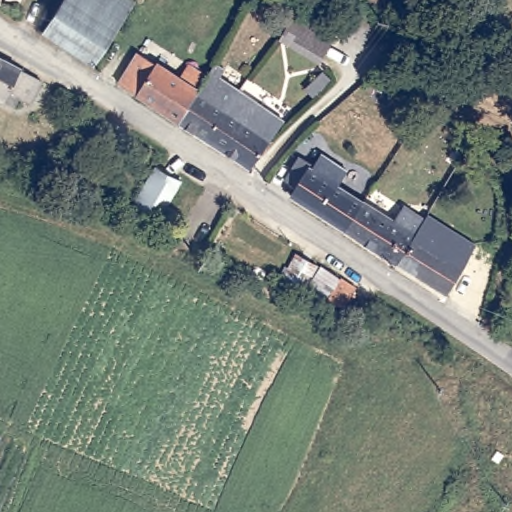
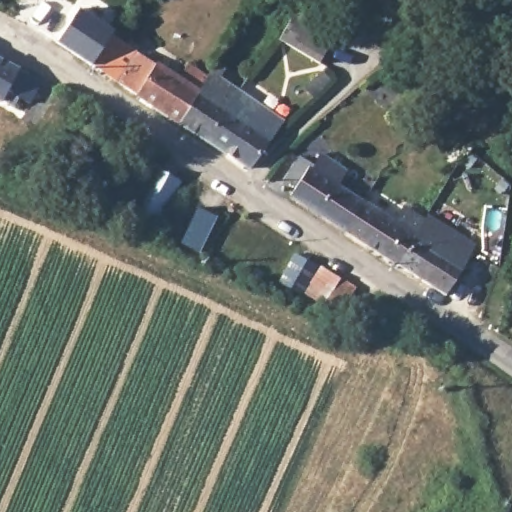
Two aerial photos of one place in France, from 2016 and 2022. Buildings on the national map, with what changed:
unchanged [(296,9),(344,37),(322,65),(281,38),(296,9)]
unchanged [(59,39),(76,10),(112,32),(93,63),(59,39)]
unchanged [(137,51),(175,76),(185,61),(206,76),(207,77),(180,122),(117,81),(137,51)]
unchanged [(23,97),(10,92),(5,101),(0,99),(0,59),(35,75),(23,97)]
unchanged [(180,122),(207,77),(206,76),(214,64),(223,70),(219,76),(237,89),(283,120),(269,140),(248,166),(225,152),(205,138),(180,122)]
unchanged [(512,114),(512,137),(509,140),(486,115),(500,101),(512,114)]
unchanged [(299,192),(289,186),(303,165),(315,172),(324,158),(350,175),(341,189),(366,205),(348,233),(294,199),(299,192)]
unchanged [(159,170),(183,185),(157,226),(133,212),(159,170)]
unchanged [(366,205),(396,224),(406,209),(429,223),(399,266),(348,233),(366,205)]
new [(197,207),(216,216),(199,252),(180,244),(197,207)]
unchanged [(429,223),(431,220),(477,250),(465,268),(467,270),(449,298),(399,266),(429,223)]
unchanged [(296,251),(318,263),(301,291),(278,282),(296,251)]
unchanged [(358,283),(345,301),(317,293),(333,267),(358,283)]
new [(485,412),(489,423),(482,425),(479,415),(485,412)]

